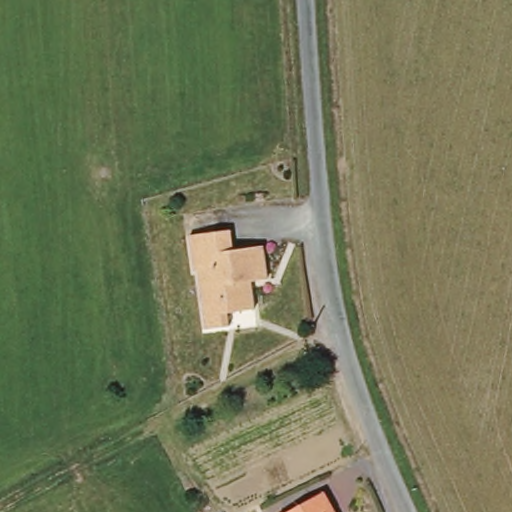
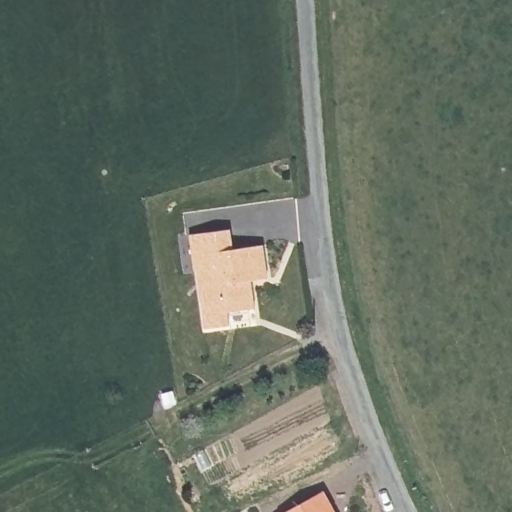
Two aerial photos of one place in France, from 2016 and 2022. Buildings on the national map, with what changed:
unchanged [(201,330),(195,270),(190,271),(186,235),(221,230),(226,230),(229,249),(236,248),(254,246),(260,245),(265,280),(257,280),(248,281),(252,310),(241,311),(228,313),(224,313),(225,327),(201,330)]
unchanged [(327,492),(337,512),(292,512),(327,492)]

